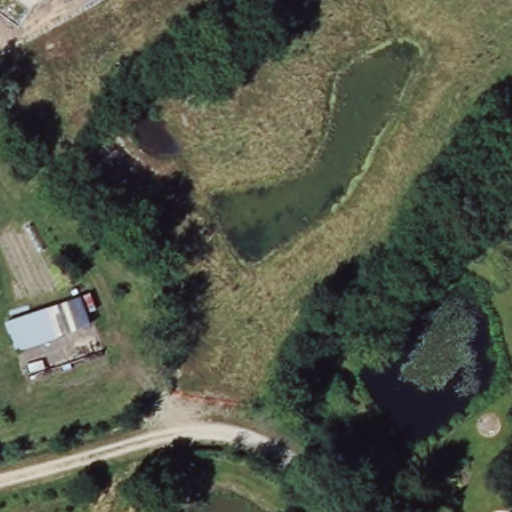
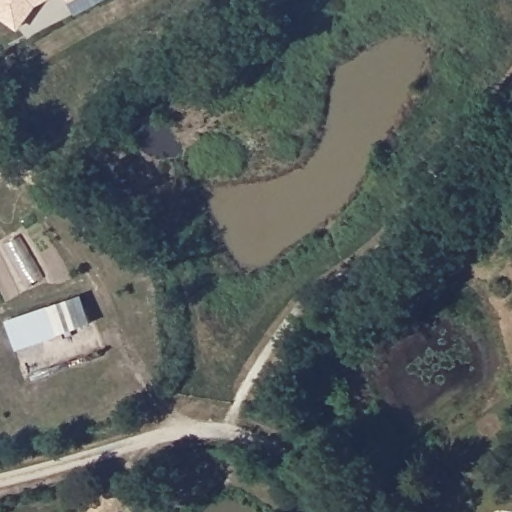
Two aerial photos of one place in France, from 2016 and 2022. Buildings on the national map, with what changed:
new [(30,9),(17,27),(0,14),(0,0),(41,0),(34,3),(30,9)]
unchanged [(14,348),(3,320),(75,295),(86,292),(91,309),(83,312),(87,322),(14,348)]

